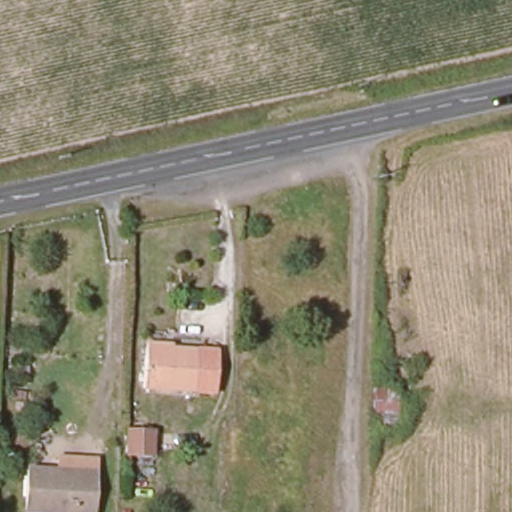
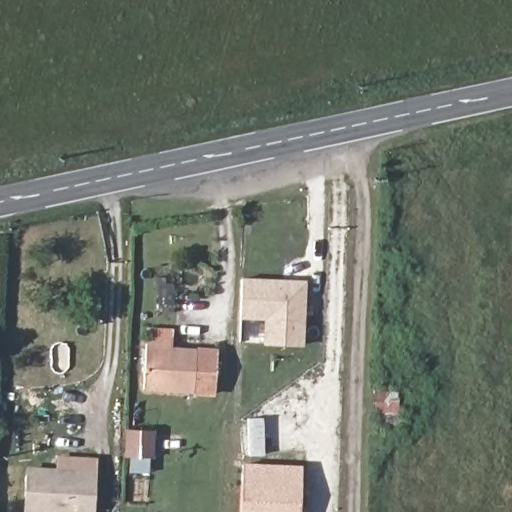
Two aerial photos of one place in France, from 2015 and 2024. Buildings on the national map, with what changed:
new [(241,278),(304,279),(302,342),(265,341),(266,316),(240,315),(241,278)]
unchanged [(219,346),(217,388),(145,387),(146,345),(219,346)]
new [(154,431),(153,457),(126,456),(127,430),(154,431)]
unchanged [(30,470),(56,472),(57,460),(95,461),(94,475),(92,512),(76,512),(28,509),(30,470)]
new [(302,465),(301,512),(239,512),(242,462),(302,465)]

